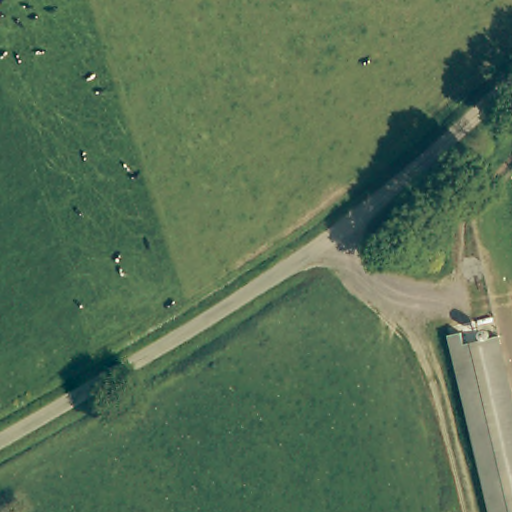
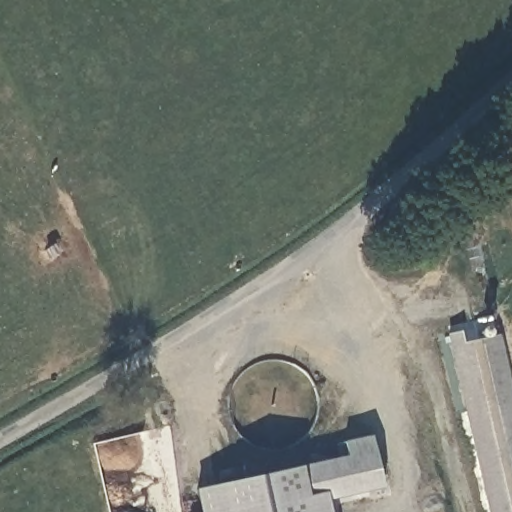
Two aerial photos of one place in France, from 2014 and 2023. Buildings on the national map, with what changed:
unchanged [(465,341),(498,333),(512,392),(512,512),(492,512),(450,333),(462,330),(465,341)]
new [(195,490),(301,466),(349,455),(345,440),(370,435),(382,488),(328,500),(331,512),(200,512),(195,490)]

